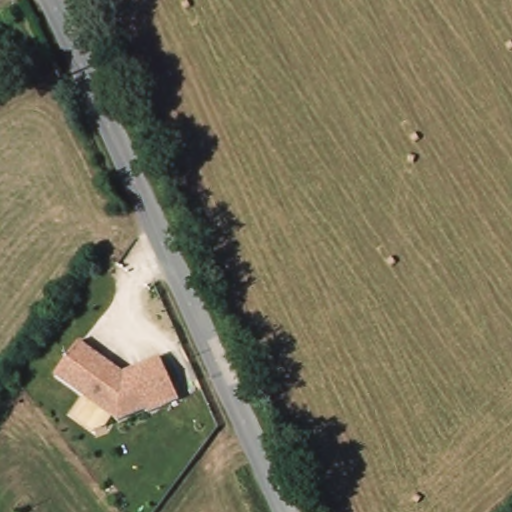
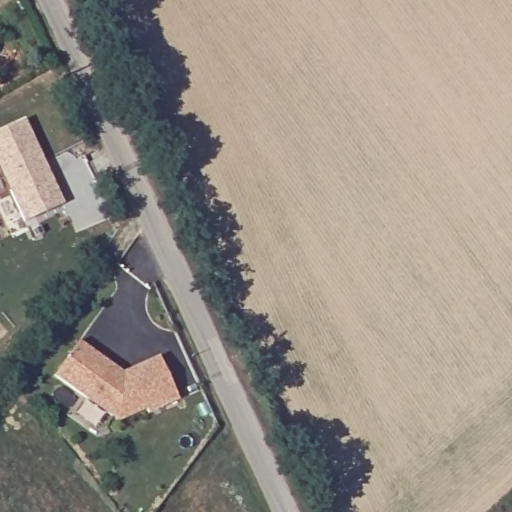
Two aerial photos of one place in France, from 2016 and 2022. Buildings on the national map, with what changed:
new [(0,166),(0,131),(26,119),(64,203),(25,220),(0,166)]
unchanged [(80,340),(122,371),(162,356),(178,401),(148,413),(147,408),(117,419),(55,376),(80,340)]

